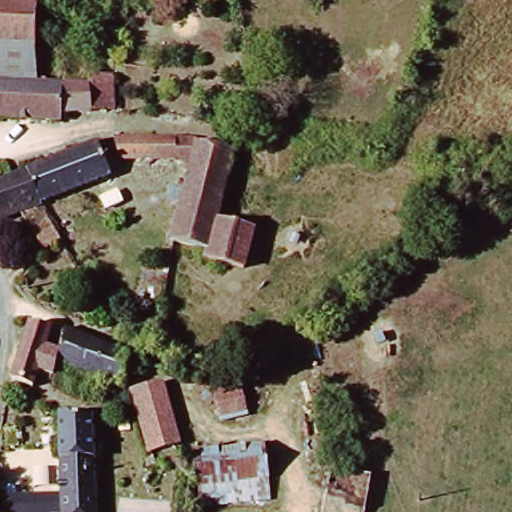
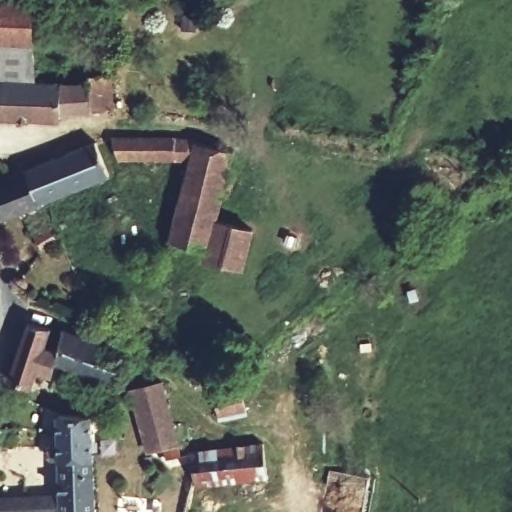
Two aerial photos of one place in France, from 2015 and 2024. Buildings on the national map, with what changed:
unchanged [(33,11),(30,46),(0,45),(0,9),(33,11)]
unchanged [(30,46),(28,85),(0,85),(0,45),(30,46)]
unchanged [(28,85),(62,86),(87,86),(90,81),(111,82),(111,116),(89,116),(73,116),(58,117),(57,122),(0,122),(0,85),(28,85)]
unchanged [(207,251),(170,240),(188,160),(118,157),(113,139),(184,140),(230,154),(215,222),(251,233),(242,270),(206,261),(207,251)]
unchanged [(25,170),(95,141),(107,174),(40,204),(25,170)]
unchanged [(25,170),(40,204),(0,220),(0,181),(25,170)]
unchanged [(42,207),(60,241),(41,250),(23,217),(42,207)]
unchanged [(8,374),(28,317),(49,322),(44,341),(60,347),(54,373),(34,367),(29,385),(8,374)]
unchanged [(105,376),(102,374),(71,363),(66,387),(51,386),(54,373),(60,347),(64,326),(119,348),(125,351),(121,378),(99,392),(105,376)]
unchanged [(145,437),(133,392),(163,384),(179,442),(150,452),(145,437)]
unchanged [(246,412),(219,416),(214,397),(257,388),(263,418),(250,423),(246,412)]
unchanged [(59,495),(59,416),(92,416),(94,512),(0,512),(0,497),(59,495)]
unchanged [(20,445),(0,447),(0,427),(19,426),(20,445)]
unchanged [(198,507),(190,452),(261,442),(270,498),(198,507)]

